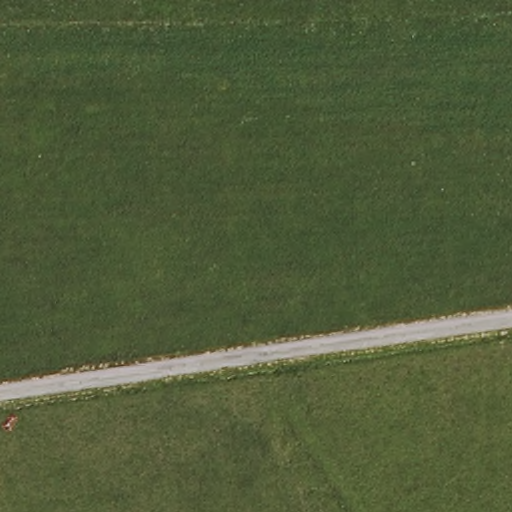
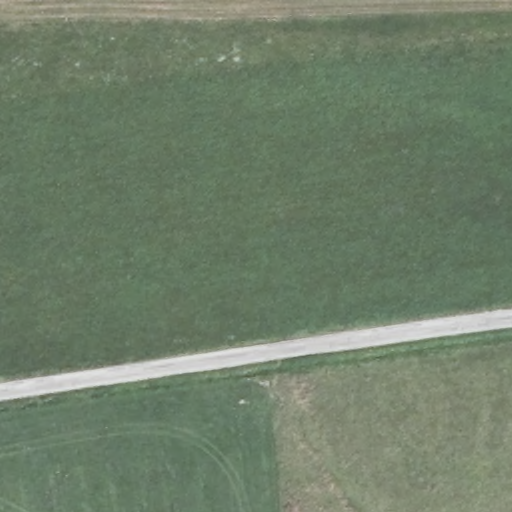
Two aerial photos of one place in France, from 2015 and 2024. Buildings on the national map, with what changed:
[]

